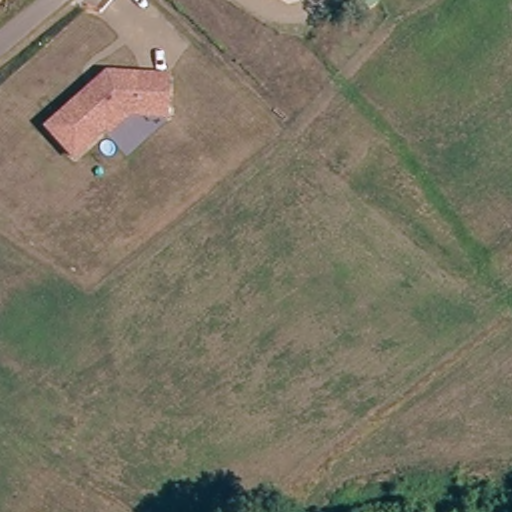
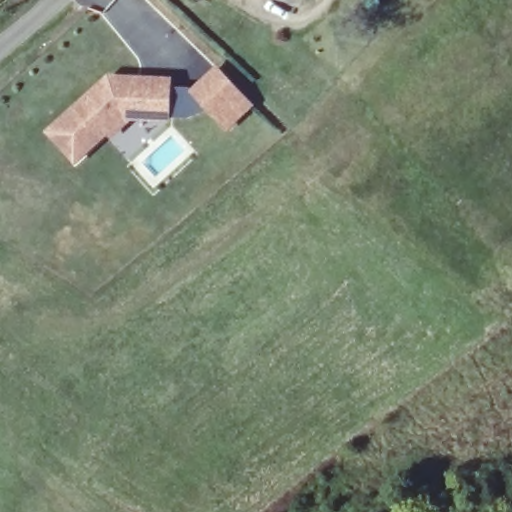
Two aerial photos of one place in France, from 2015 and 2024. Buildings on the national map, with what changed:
new [(230,130),(207,110),(188,119),(170,118),(170,87),(192,88),(217,66),(254,107),(230,130)]
unchanged [(114,135),(111,132),(79,164),(78,163),(51,135),(92,94),(96,98),(102,92),(98,89),(109,78),(165,78),(170,78),(170,118),(125,118),(128,121),(114,135)]

